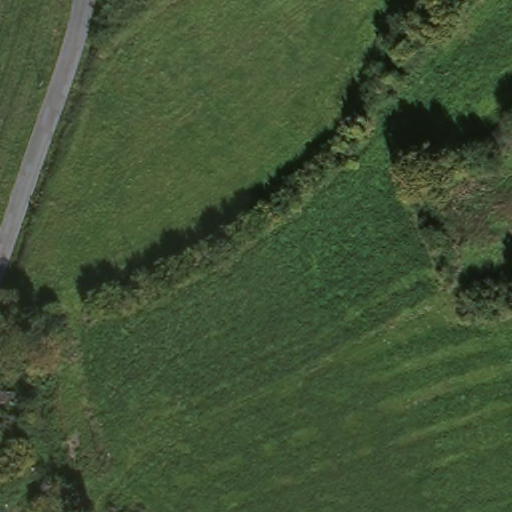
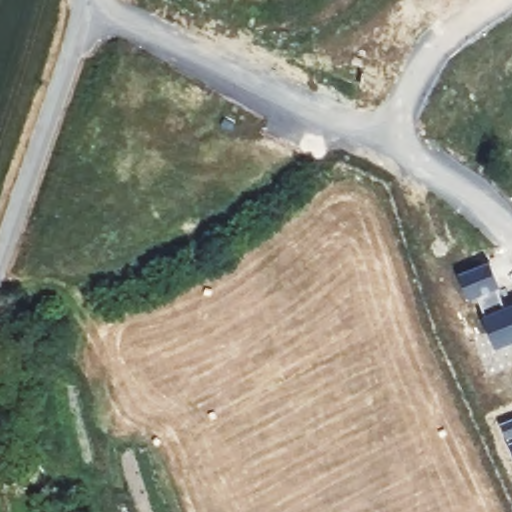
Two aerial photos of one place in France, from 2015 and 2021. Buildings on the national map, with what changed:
new [(491,264),(502,290),(498,291),(506,311),(512,309),(512,346),(498,351),(485,319),(487,319),(479,299),(471,302),(460,276),(491,264)]
new [(512,422),(512,449),(502,426),(512,422)]

